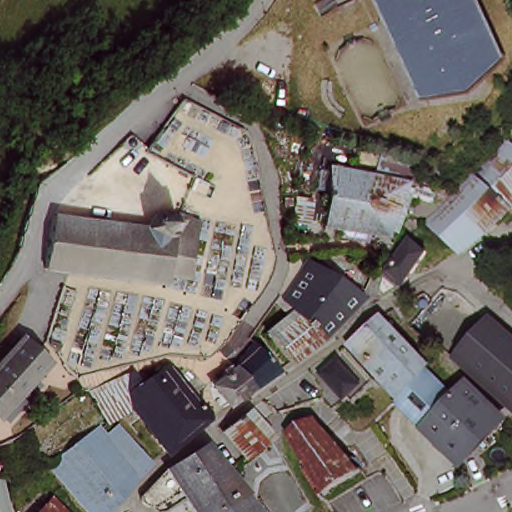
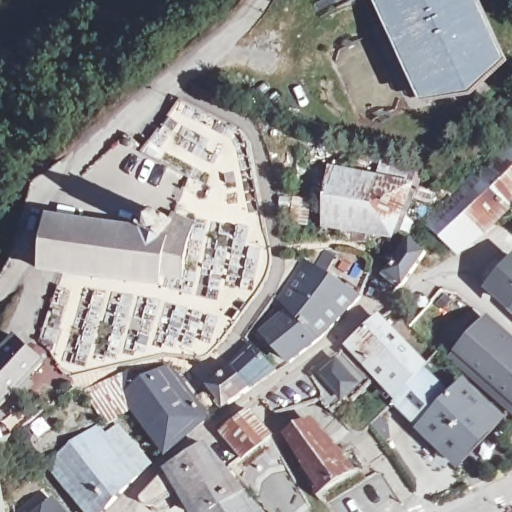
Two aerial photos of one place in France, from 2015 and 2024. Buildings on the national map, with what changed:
unchanged [(497,59),(468,85),(434,87),(392,0),(470,0),(497,59)]
unchanged [(480,177),(502,151),(512,158),(512,211),(480,177)]
unchanged [(307,190),(322,191),(327,167),(430,191),(415,238),(354,220),(350,230),(337,230),(332,242),(310,237),(315,217),(300,215),(307,190)]
unchanged [(462,196),(480,177),(512,211),(512,214),(484,236),(460,251),(434,227),(462,196)]
unchanged [(182,249),(181,278),(162,276),(159,285),(64,272),(39,270),(45,219),(141,230),(150,212),(168,222),(171,217),(190,226),(182,249)]
unchanged [(404,285),(387,272),(395,261),(400,255),(411,240),(427,254),(404,285)]
unchanged [(312,275),(319,266),(322,269),(330,258),(364,280),(355,301),(312,275)]
new [(512,262),(512,314),(485,289),(512,262)]
unchanged [(260,336),(286,314),(275,302),(300,267),(312,275),(355,301),(313,343),(282,366),(260,336)]
unchanged [(347,345),(376,320),(379,320),(422,366),(415,375),(395,400),(347,345)]
unchanged [(512,344),(512,416),(450,357),(486,320),(512,344)]
unchanged [(54,355),(38,371),(44,375),(12,410),(6,405),(3,408),(0,406),(0,359),(27,330),(54,355)]
unchanged [(212,386),(234,370),(250,348),(275,375),(248,393),(227,406),(212,386)]
unchanged [(320,398),(305,376),(342,353),(372,387),(332,420),(315,401),(320,398)]
unchanged [(461,453),(452,460),(421,432),(395,400),(415,375),(422,366),(448,394),(460,384),(495,418),(490,424),(471,446),(461,453)]
unchanged [(210,417),(167,452),(136,409),(170,371),(179,374),(210,417)]
unchanged [(90,392),(122,379),(136,409),(110,423),(105,415),(90,392)]
unchanged [(222,428),(248,409),(268,435),(241,455),(222,428)]
unchanged [(342,455),(350,468),(319,487),(290,442),(284,424),(305,411),(323,425),(332,440),(342,455)]
unchanged [(122,428),(152,465),(140,477),(129,490),(108,465),(100,472),(80,446),(102,429),(109,438),(122,428)]
unchanged [(75,492),(53,466),(80,446),(100,472),(75,492)]
unchanged [(160,507),(152,509),(141,507),(137,500),(164,472),(202,447),(241,495),(214,512),(192,512),(177,493),(160,507)]
unchanged [(100,472),(108,465),(129,490),(121,500),(110,512),(90,512),(75,492),(100,472)]
unchanged [(8,507),(9,512),(0,512),(0,486),(3,486),(8,507)]
unchanged [(214,512),(241,495),(254,512),(214,512)]
unchanged [(64,512),(36,512),(51,497),(64,512)]

